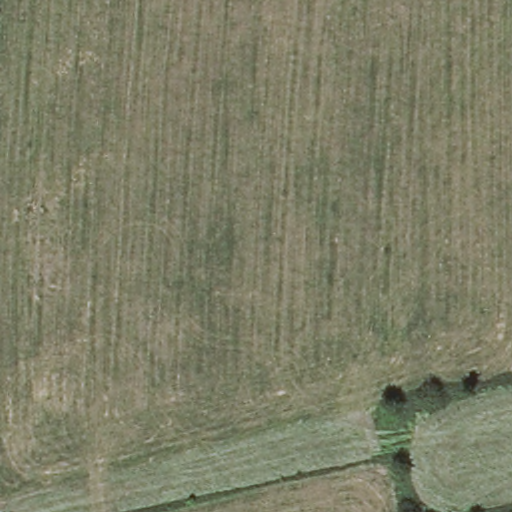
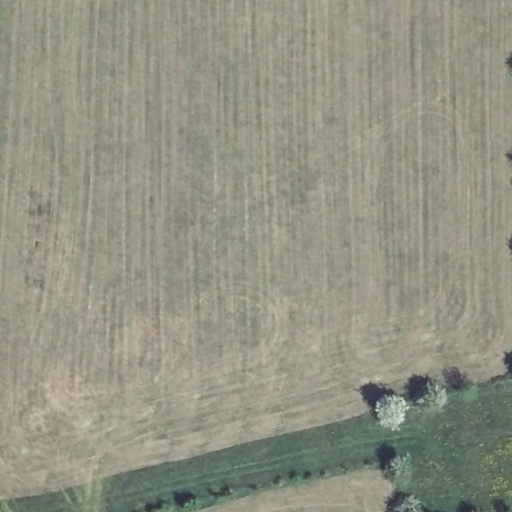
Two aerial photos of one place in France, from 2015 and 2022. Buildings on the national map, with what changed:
[]

